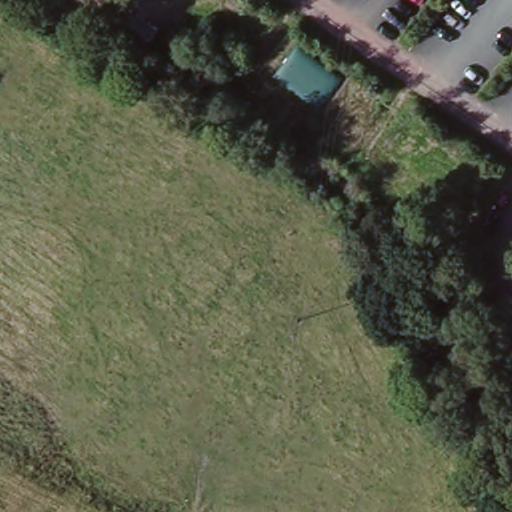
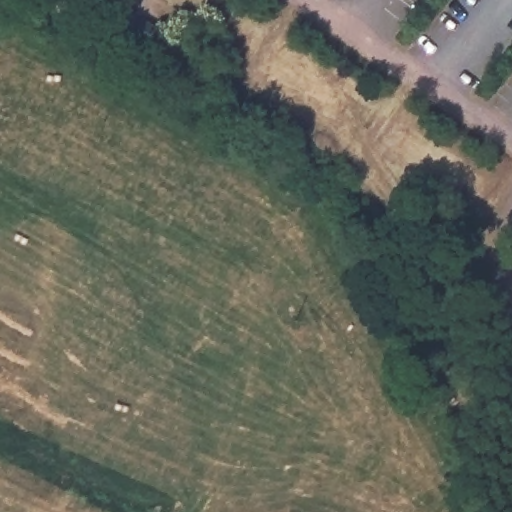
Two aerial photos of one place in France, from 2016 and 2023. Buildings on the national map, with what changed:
unchanged [(145,26),(172,42),(164,58),(136,42),(145,26)]

